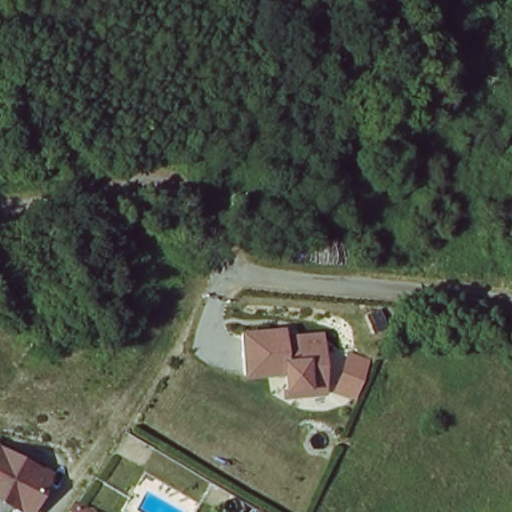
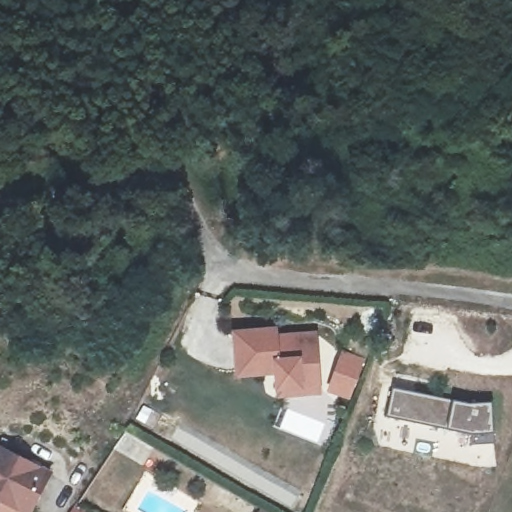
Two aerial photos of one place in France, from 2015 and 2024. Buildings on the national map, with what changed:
unchanged [(309,397),(302,397),(285,397),(285,390),(270,391),(269,375),(236,376),(230,376),(229,335),(258,333),(269,333),(269,341),(308,339),(309,379),(309,397)]
new [(365,360),(350,400),(327,392),(341,351),(365,360)]
new [(472,402),(491,402),(492,433),(496,433),(497,446),(472,446),(472,433),(387,417),(395,387),(472,402)]
unchanged [(7,502),(0,499),(0,447),(29,462),(48,472),(26,512),(7,502)]

